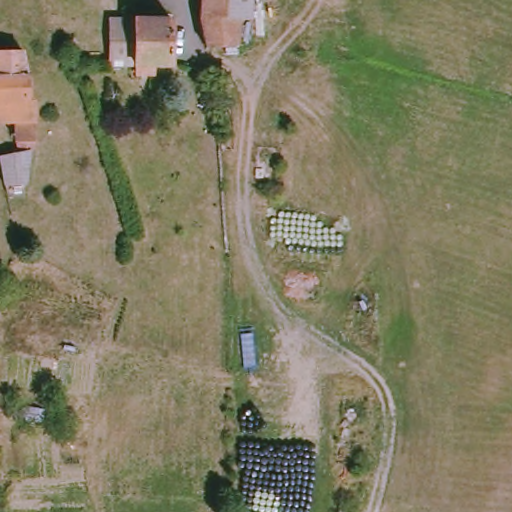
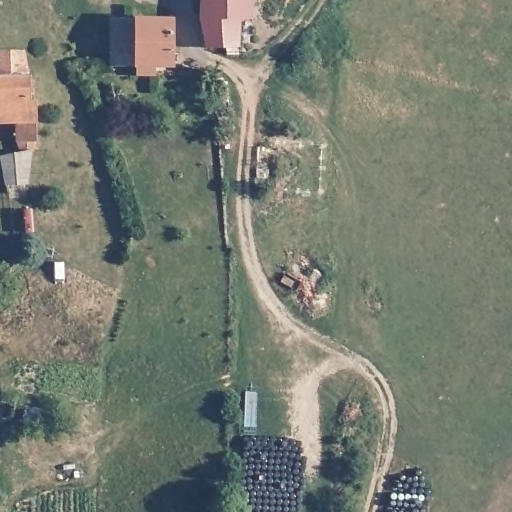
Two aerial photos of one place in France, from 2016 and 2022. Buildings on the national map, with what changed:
unchanged [(253,17),(242,18),(241,48),(209,50),(199,8),(199,0),(253,0),(253,17)]
unchanged [(125,68),(125,58),(112,59),(111,17),(169,16),(168,67),(125,68)]
unchanged [(28,100),(25,137),(20,143),(20,183),(0,187),(0,147),(7,145),(5,119),(0,120),(0,53),(15,50),(17,72),(18,96),(28,100)]

